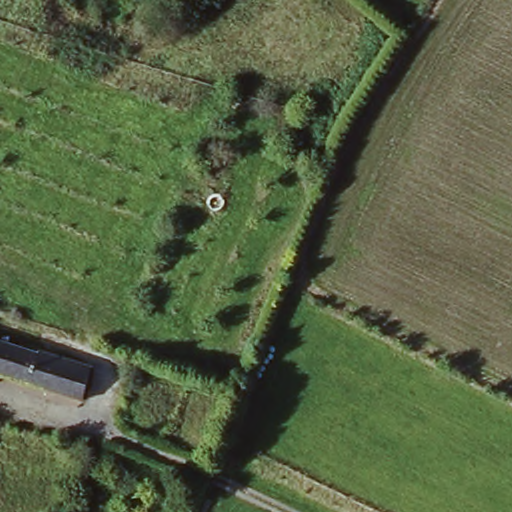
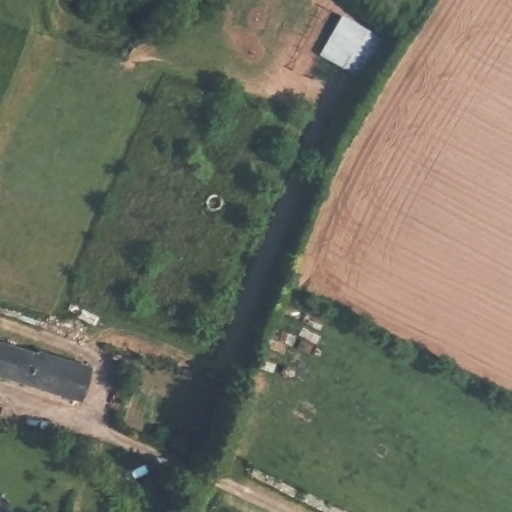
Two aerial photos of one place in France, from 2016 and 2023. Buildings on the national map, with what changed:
new [(382,35),(358,76),(320,54),(342,14),(382,35)]
unchanged [(37,354),(39,351),(92,367),(81,400),(0,375),(0,342),(16,347),(37,354)]

